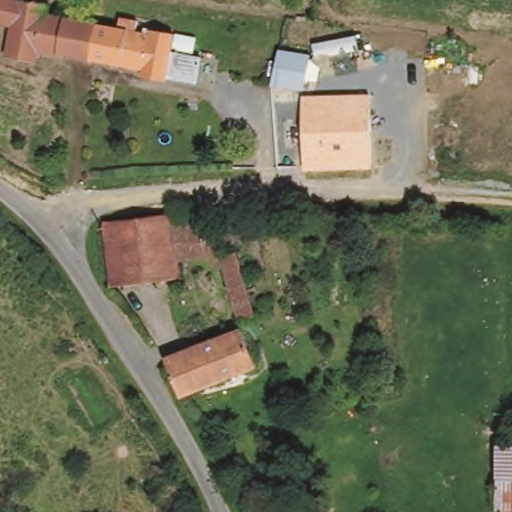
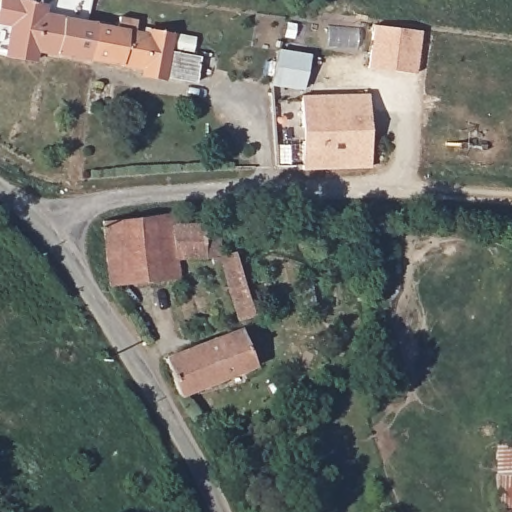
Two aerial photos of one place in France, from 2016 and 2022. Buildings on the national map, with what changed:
unchanged [(0,26),(0,11),(3,0),(13,0),(50,7),(48,17),(95,26),(90,59),(40,50),(38,62),(7,55),(11,28),(0,26)]
unchanged [(142,80),(143,73),(123,70),(124,66),(90,59),(95,26),(109,28),(110,20),(128,22),(126,33),(142,35),(143,29),(173,33),(166,78),(164,84),(142,80)]
new [(368,67),(374,26),(422,32),(416,73),(368,67)]
unchanged [(304,87),(272,82),(278,46),(312,52),(304,87)]
unchanged [(372,169),(304,172),(302,95),(372,91),(372,169)]
unchanged [(178,215),(213,215),(213,232),(225,231),(225,253),(242,252),(258,318),(240,319),(227,264),(218,264),(216,256),(184,259),(185,278),(113,287),(107,221),(178,215)]
unchanged [(240,330),(254,368),(185,396),(181,397),(166,359),(240,330)]
unchanged [(498,446),(512,446),(512,511),(497,510),(498,446)]

